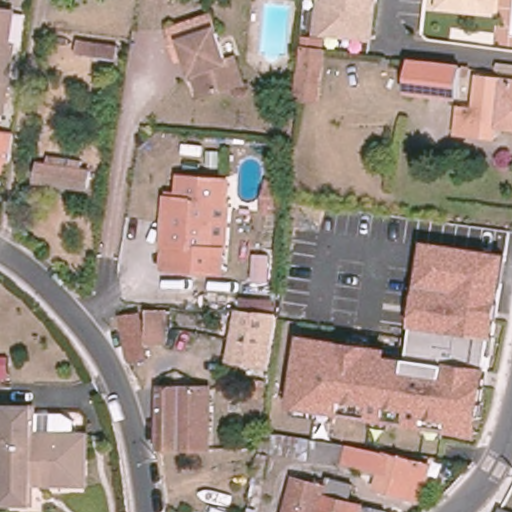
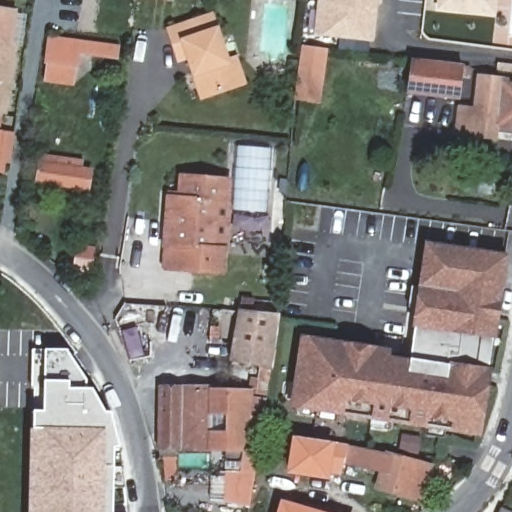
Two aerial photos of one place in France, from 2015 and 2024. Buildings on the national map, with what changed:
unchanged [(376,4),(374,41),(313,35),(316,0),(382,0),(382,4),(376,4)]
unchanged [(434,11),(435,0),(496,0),(494,16),(434,11)]
unchanged [(8,46),(0,96),(0,11),(8,13),(3,45),(8,46)]
unchanged [(228,61),(234,59),(236,58),(244,83),(202,98),(194,75),(182,38),(173,41),(169,30),(212,15),(217,28),(228,61)]
new [(119,47),(118,59),(85,55),(77,86),(45,81),(51,36),(119,47)]
unchanged [(306,48),(326,51),(319,101),(300,99),(306,48)]
unchanged [(412,61),(463,67),(459,99),(408,93),(412,61)]
unchanged [(460,108),(475,110),(479,77),(512,81),(512,129),(497,127),(497,132),(496,138),(457,134),(457,128),(460,108)]
unchanged [(3,134),(0,158),(0,133),(3,134)]
unchanged [(51,165),(51,158),(70,161),(69,168),(91,171),(88,188),(38,181),(41,163),(51,165)]
unchanged [(178,176),(226,180),(219,273),(159,268),(161,246),(159,246),(163,197),(176,198),(178,176)]
unchanged [(479,434),(290,408),(299,336),(390,348),(389,355),(409,358),(425,242),(508,254),(479,434)]
unchanged [(127,305),(167,308),(166,341),(153,344),(152,358),(131,363),(118,316),(127,305)]
unchanged [(277,314),(282,315),(272,366),(237,359),(246,311),(277,314)]
new [(35,389),(32,389),(33,350),(67,350),(87,380),(87,389),(93,389),(106,412),(111,412),(117,431),(123,468),(125,488),(113,489),(113,512),(32,512),(35,389)]
new [(272,366),(267,398),(249,507),(222,502),(224,471),(240,472),(242,450),(245,450),(255,390),(249,390),(250,377),(257,378),(260,363),(272,366)]
unchanged [(182,388),(212,388),(211,449),(161,447),(162,388),(182,388)]
new [(212,388),(255,390),(245,450),(211,449),(212,388)]
demolished [(83,484),(30,484),(30,503),(3,503),(5,407),(31,408),(31,411),(63,411),(71,420),(71,435),(84,435),(83,484)]
new [(346,465),(343,465),(341,476),(330,474),(329,481),(286,473),(292,435),(335,442),(349,445),(349,447),(346,465)]
unchanged [(345,467),(349,447),(381,453),(392,456),(427,466),(417,501),(371,488),(375,473),(345,467)]
demolished [(290,477),(322,486),(324,478),(349,485),(345,501),(383,512),(281,512),(290,477)]
new [(280,498),(327,512),(276,512),(280,498)]
unchanged [(502,509),(511,512),(501,512),(502,509)]

